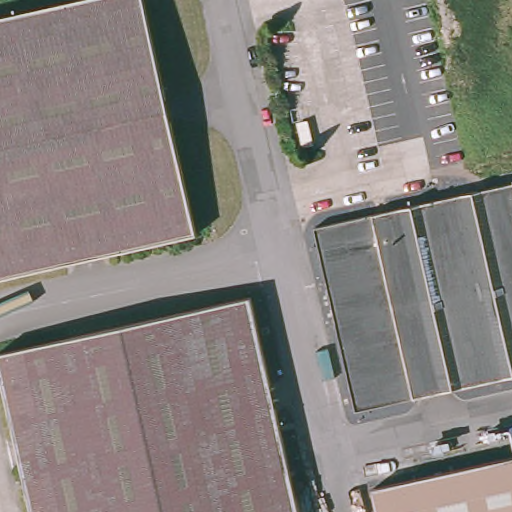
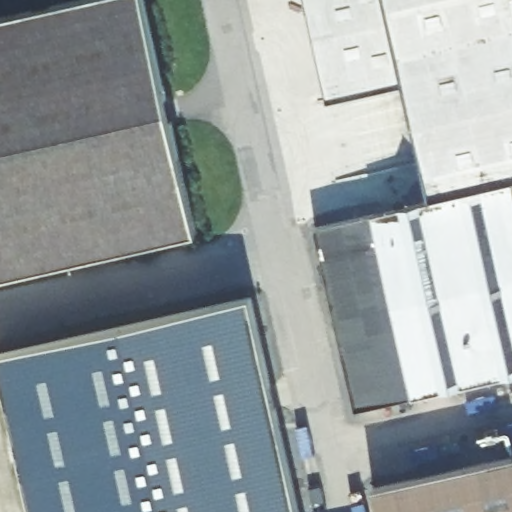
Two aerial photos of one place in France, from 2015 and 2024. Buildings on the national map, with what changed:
unchanged [(81,0),(145,0),(197,236),(0,279),(0,18),(81,0)]
new [(338,84),(319,0),(512,0),(512,181),(443,197),(417,68),(338,84)]
unchanged [(311,227),(395,207),(443,197),(512,181),(512,374),(355,409),(311,227)]
unchanged [(254,297),(300,512),(31,512),(0,372),(0,354),(254,297)]
unchanged [(512,458),(512,512),(377,512),(372,490),(512,458)]

